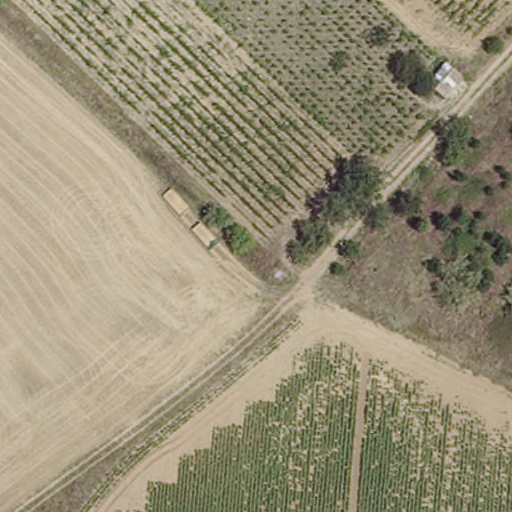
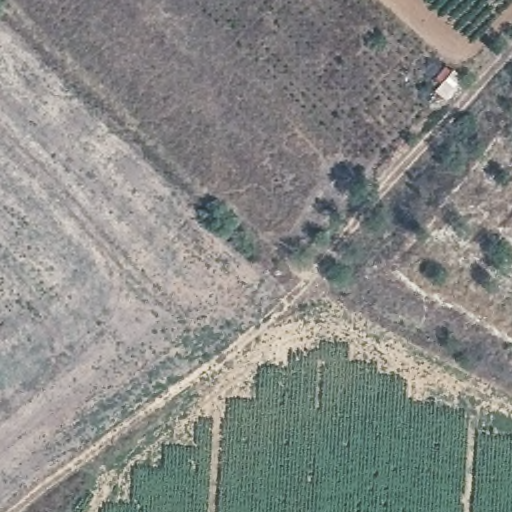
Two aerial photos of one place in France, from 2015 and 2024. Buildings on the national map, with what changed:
unchanged [(431,93),(452,72),(464,83),(444,105),(431,93)]

